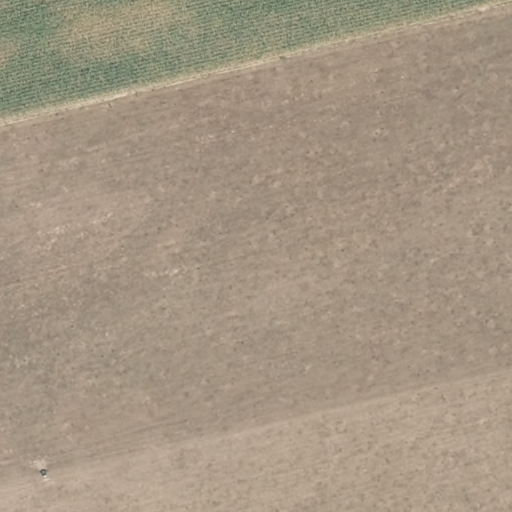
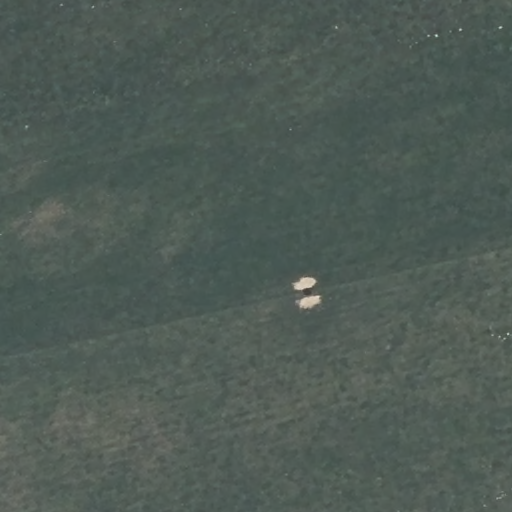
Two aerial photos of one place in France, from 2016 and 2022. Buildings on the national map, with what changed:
[]

